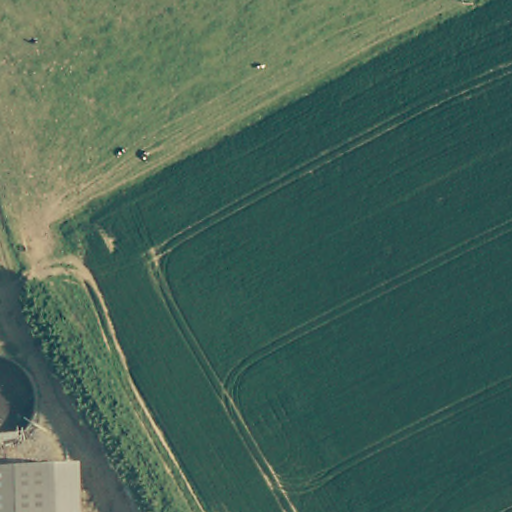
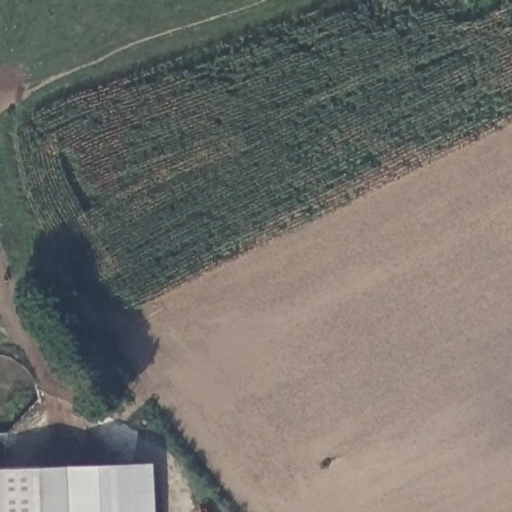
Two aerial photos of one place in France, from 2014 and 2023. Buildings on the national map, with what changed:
new [(157,512),(66,512),(64,465),(154,462),(157,512)]
unchanged [(66,512),(0,512),(0,468),(64,465),(66,512)]

